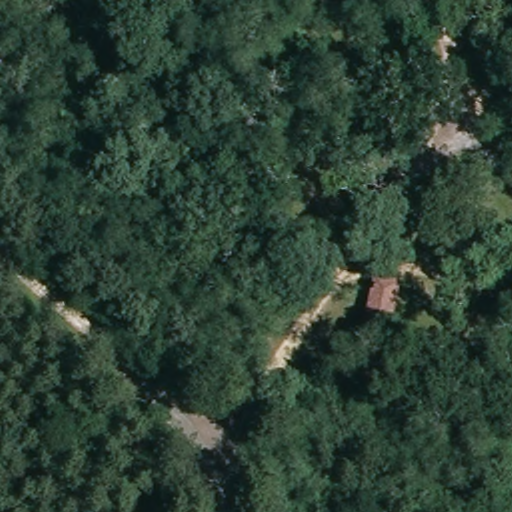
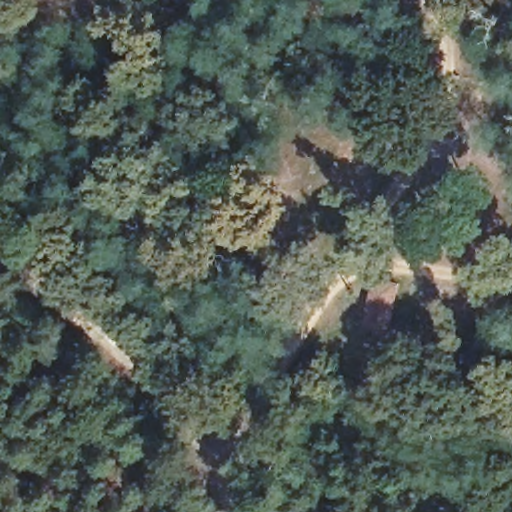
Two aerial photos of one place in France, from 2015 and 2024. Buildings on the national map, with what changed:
unchanged [(364,325),(375,280),(405,289),(394,331),(364,325)]

